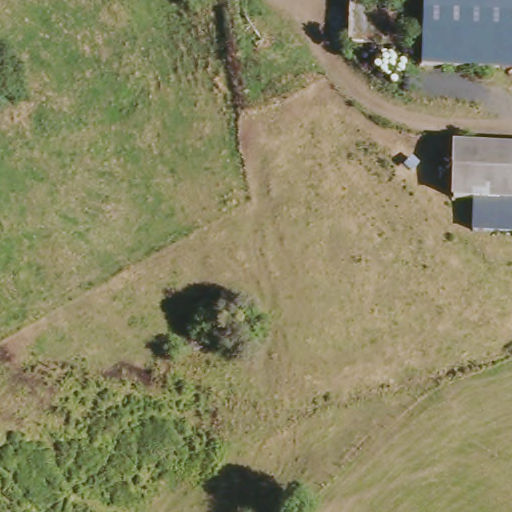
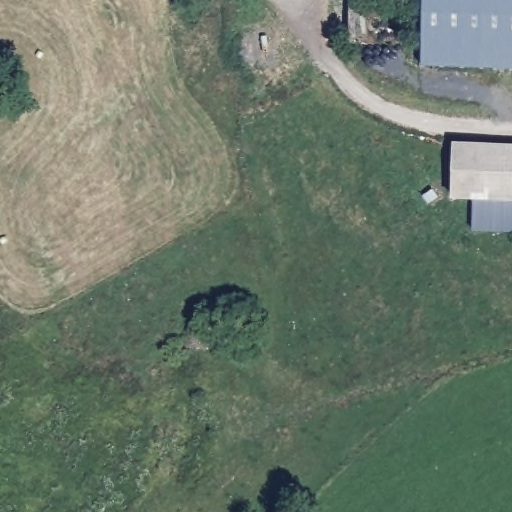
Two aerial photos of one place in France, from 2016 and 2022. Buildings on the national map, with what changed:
unchanged [(427,78),(427,25),(426,0),(512,0),(512,74),(427,78)]
unchanged [(487,239),(485,212),(462,213),(460,155),(512,152),(512,238),(487,239)]

